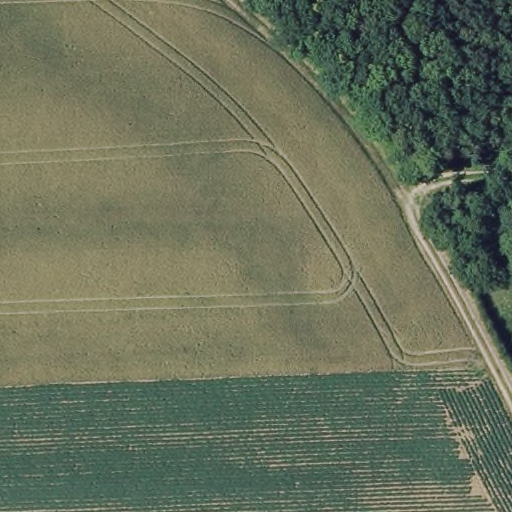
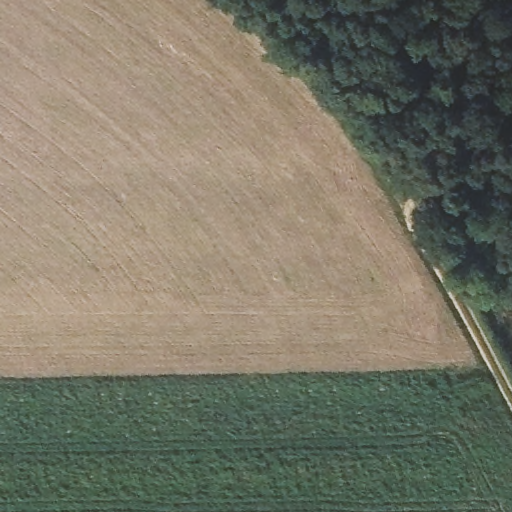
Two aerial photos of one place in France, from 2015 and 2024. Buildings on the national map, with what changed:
unchanged [(500,48),(500,64),(479,63),(480,48),(500,48)]

